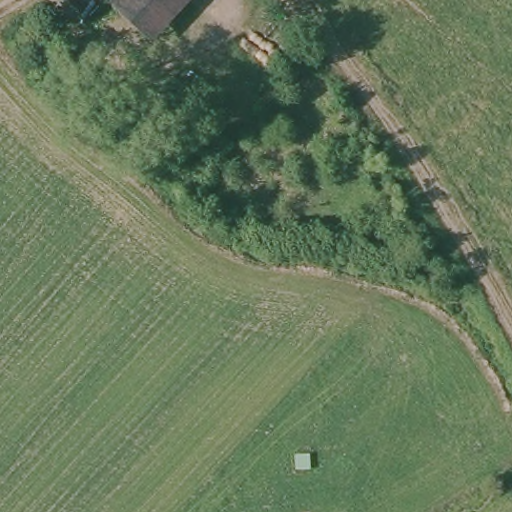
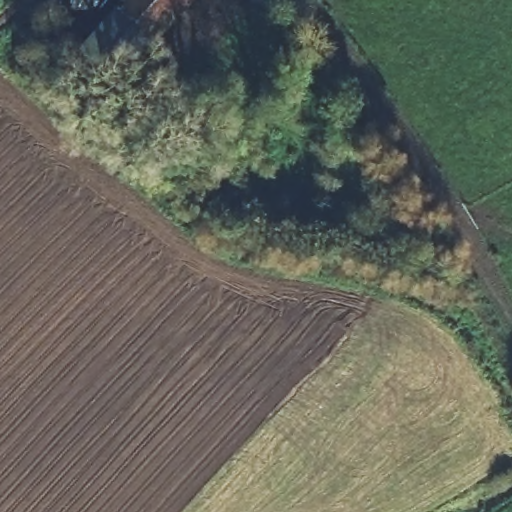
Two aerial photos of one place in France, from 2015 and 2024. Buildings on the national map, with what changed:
unchanged [(129,58),(93,27),(118,0),(184,0),(129,58)]

